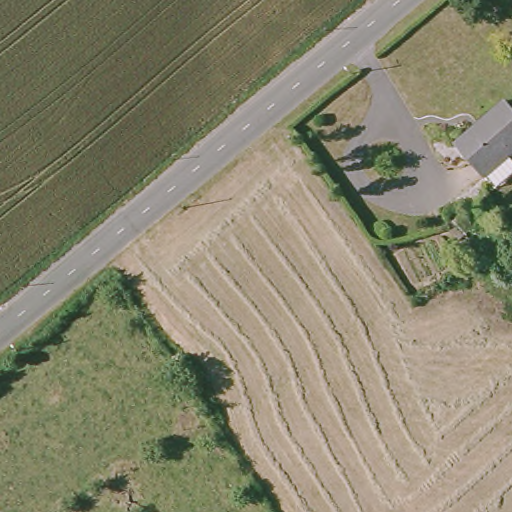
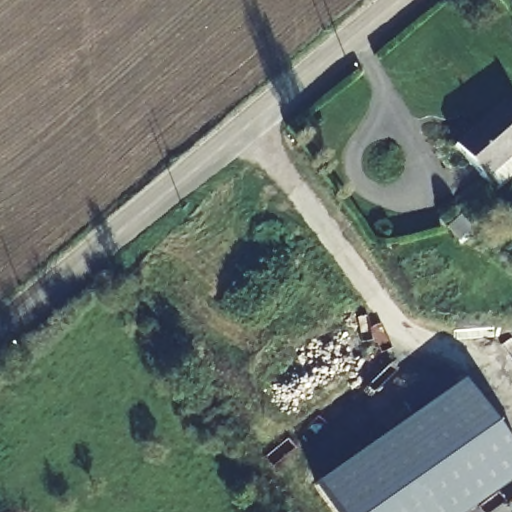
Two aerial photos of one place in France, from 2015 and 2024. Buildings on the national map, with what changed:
unchanged [(507,95),(512,102),(512,147),(506,151),(512,160),(512,168),(492,182),(458,134),(507,95)]
new [(467,381),(512,444),(512,484),(472,512),(342,512),(322,484),(467,381)]

